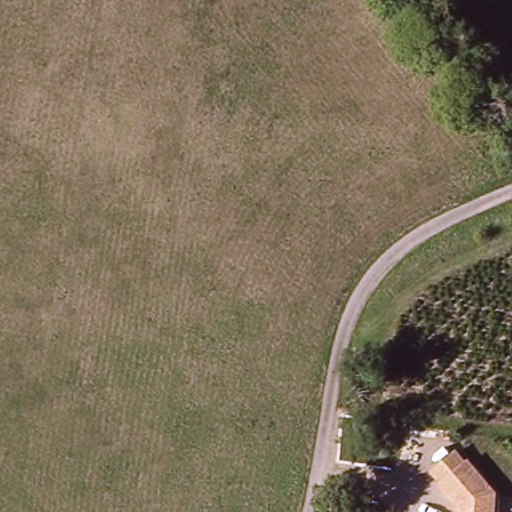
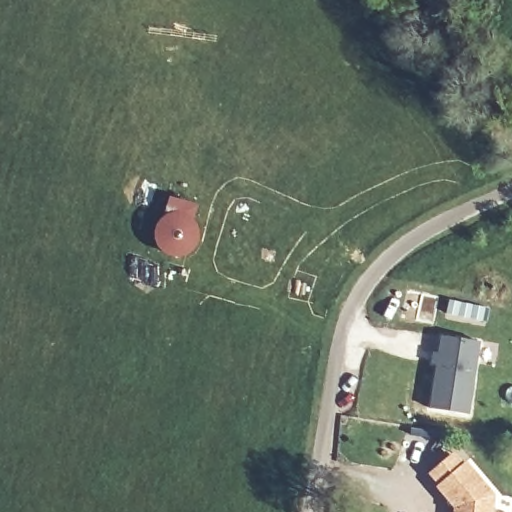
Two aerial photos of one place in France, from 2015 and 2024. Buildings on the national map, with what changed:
new [(155,227),(168,196),(198,204),(194,220),(198,232),(197,242),(192,250),(181,256),(172,256),(164,252),(159,247),(155,239),(154,234),(155,227)]
new [(429,408),(440,335),(479,342),(469,413),(429,408)]
unchanged [(456,510),(438,488),(440,487),(430,476),(456,454),(465,466),(467,464),(495,497),(494,512),(456,512),(456,510)]

